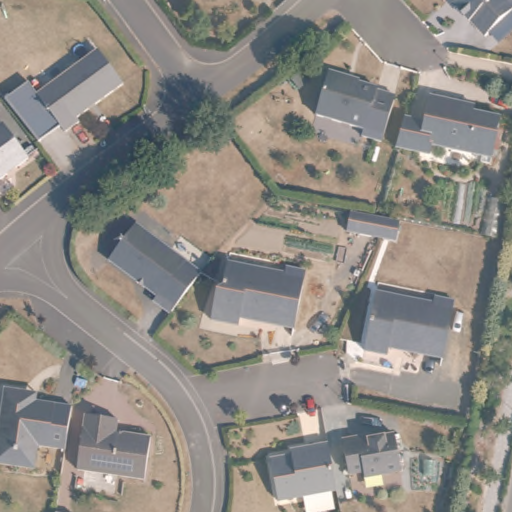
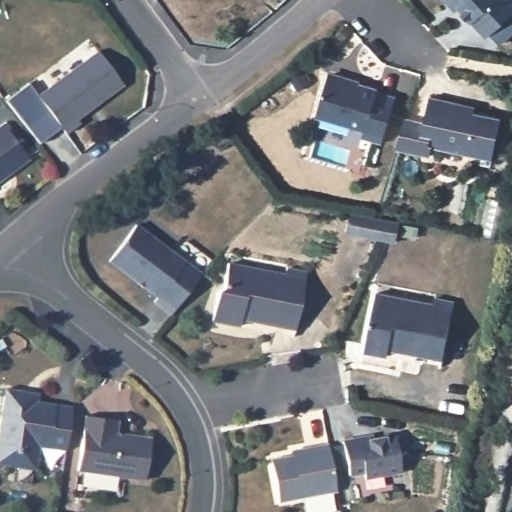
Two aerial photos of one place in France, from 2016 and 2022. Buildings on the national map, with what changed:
unchanged [(439,0),(444,0),(441,2),(439,0)]
unchanged [(478,38),(476,35),(477,34),(465,22),(445,0),(512,0),(512,9),(478,38)]
unchanged [(99,48),(124,82),(76,117),(79,120),(65,130),(38,92),(99,48)]
unchanged [(373,86),(372,89),(392,95),(380,141),(360,136),(361,127),(312,115),(324,73),(373,86)]
unchanged [(478,165),(480,160),(430,145),(427,155),(395,145),(403,116),(421,121),(428,95),(465,106),(463,112),(501,123),(495,143),(488,168),(478,165)]
unchanged [(26,159),(0,180),(0,125),(26,159)]
unchanged [(347,232),(350,212),(373,216),(397,220),(394,241),(367,236),(347,232)]
unchanged [(200,270),(169,312),(151,299),(155,295),(106,258),(134,221),(200,270)]
unchanged [(284,273),(285,267),(305,272),(295,322),(251,312),(242,318),(238,317),(236,326),(209,320),(215,290),(221,286),(226,262),(284,273)]
unchanged [(436,305),(437,298),(456,302),(446,353),(403,344),(395,350),(390,349),(388,356),(365,352),(377,293),(436,305)]
unchanged [(61,445),(35,442),(31,466),(0,461),(0,384),(20,387),(19,394),(67,401),(61,445)]
unchanged [(115,415),(114,427),(149,432),(143,476),(75,466),(82,410),(115,415)]
unchanged [(395,433),(402,472),(366,478),(365,472),(349,475),(342,440),(364,436),(365,438),(395,433)]
unchanged [(328,441),(337,488),(278,500),(270,456),(298,451),(297,447),(328,441)]

